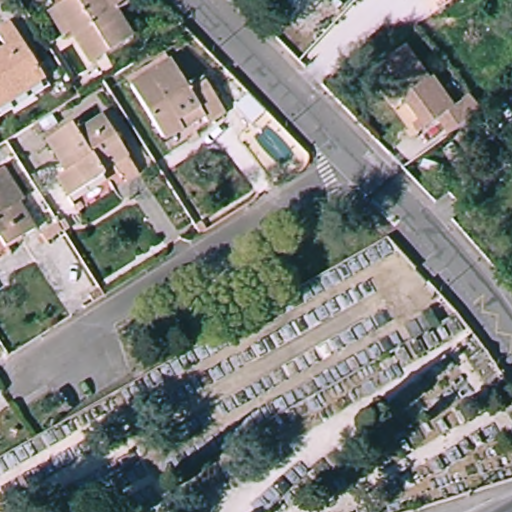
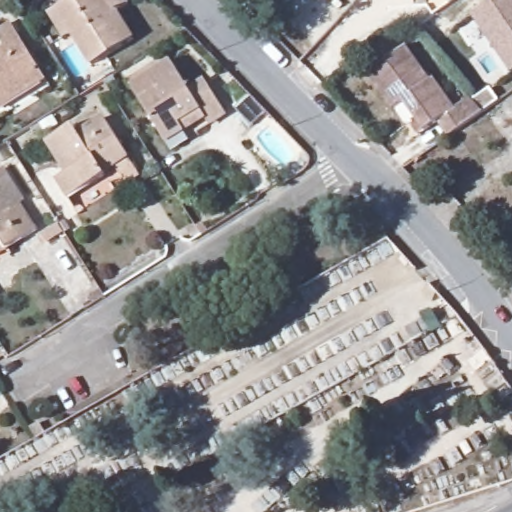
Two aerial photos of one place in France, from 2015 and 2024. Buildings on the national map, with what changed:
unchanged [(48,12),(56,7),(68,0),(126,0),(129,5),(118,12),(134,39),(93,65),(73,34),(64,39),(48,12)]
unchanged [(336,4),(331,0),(339,0),(336,4)]
new [(510,72),(471,14),(490,0),(512,0),(512,71),(510,72)]
unchanged [(0,111),(0,55),(7,51),(0,40),(0,34),(11,27),(45,82),(0,111)]
unchanged [(483,112),(449,136),(439,121),(426,131),(404,101),(394,109),(369,74),(407,47),(431,81),(434,79),(455,109),(471,97),(483,112)]
unchanged [(166,145),(161,137),(126,81),(138,75),(134,68),(147,60),(151,66),(166,56),(184,85),(201,75),(221,107),(205,119),(201,113),(180,126),(184,135),(166,145)]
unchanged [(86,197),(80,187),(63,197),(52,178),(60,173),(41,141),(68,125),(73,132),(99,117),(123,157),(131,170),(118,178),(110,165),(98,171),(100,175),(106,185),(86,197)]
unchanged [(31,224),(0,244),(0,206),(13,198),(31,224)]
unchanged [(53,219),(59,215),(64,223),(58,226),(53,219)]
unchanged [(56,227),(41,237),(36,229),(51,220),(56,227)]

